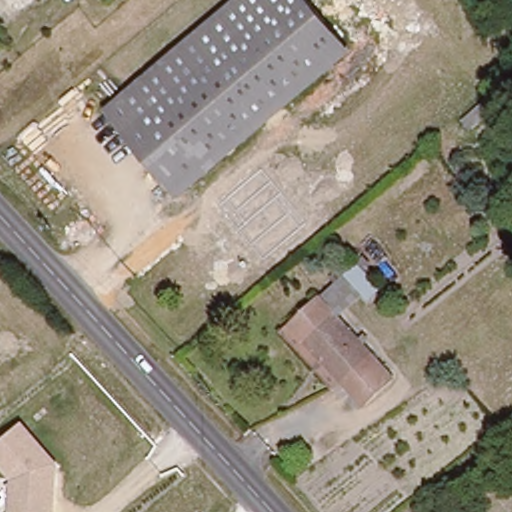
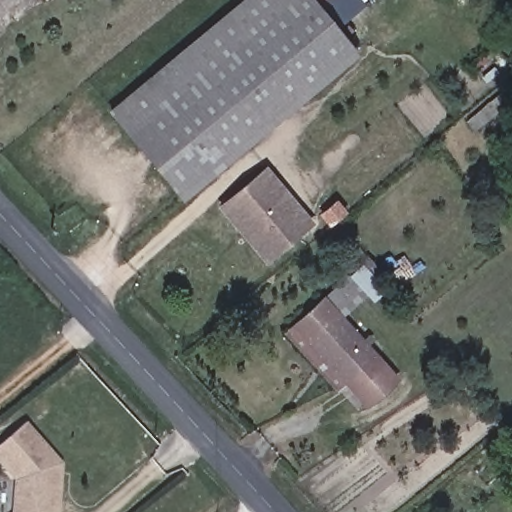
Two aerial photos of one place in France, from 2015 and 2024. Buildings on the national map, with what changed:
unchanged [(351,50),(180,191),(111,109),(242,0),(309,0),(351,50)]
new [(309,0),(360,0),(364,5),(333,28),(309,0)]
new [(266,263),(217,206),(265,163),(315,222),(266,263)]
unchanged [(363,260),(381,281),(338,319),(319,298),(363,260)]
unchanged [(296,348),(303,341),(290,325),(319,298),(338,319),(391,377),(362,404),(339,379),(331,387),(296,348)]
unchanged [(0,465),(0,447),(26,424),(62,465),(60,512),(12,512),(15,480),(0,465)]
demolished [(507,440),(512,435),(512,447),(507,440)]

